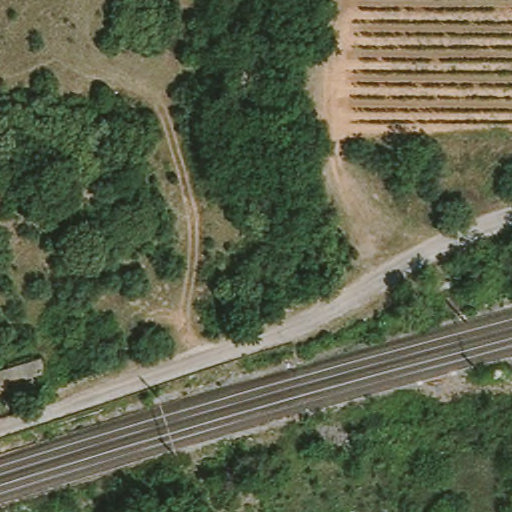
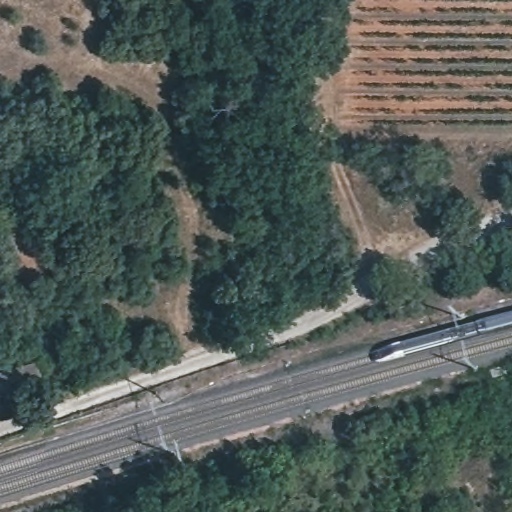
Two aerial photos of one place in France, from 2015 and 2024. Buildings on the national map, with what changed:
unchanged [(46,381),(9,392),(3,374),(40,362),(46,381)]

